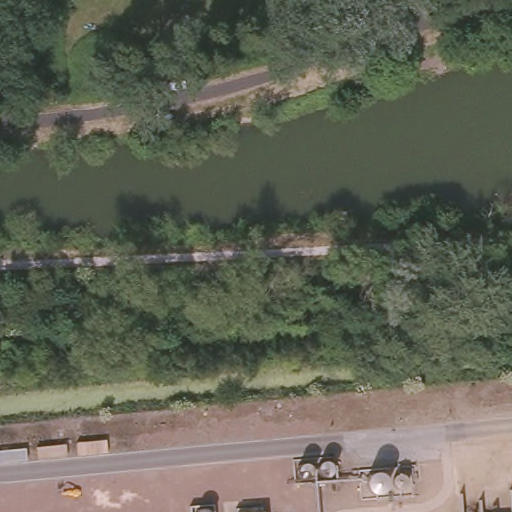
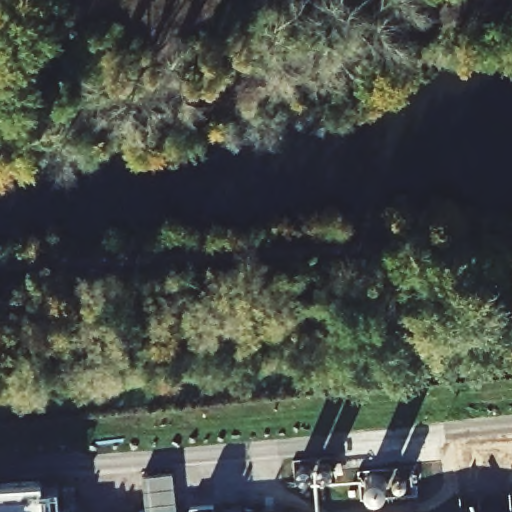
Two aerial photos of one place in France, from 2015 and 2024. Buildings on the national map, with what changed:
new [(143,476),(173,473),(177,512),(147,512),(143,476)]
new [(0,481),(42,478),(44,512),(0,512),(0,481)]

